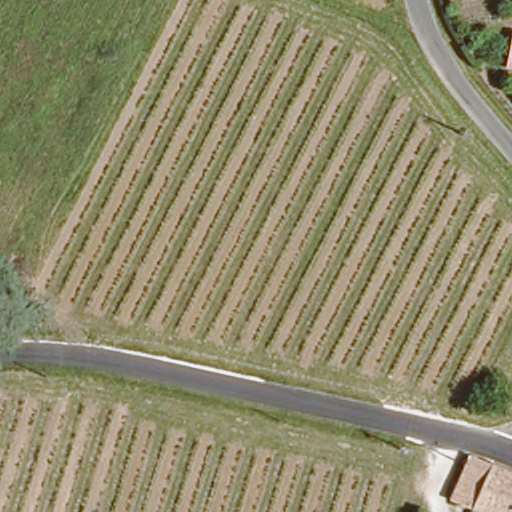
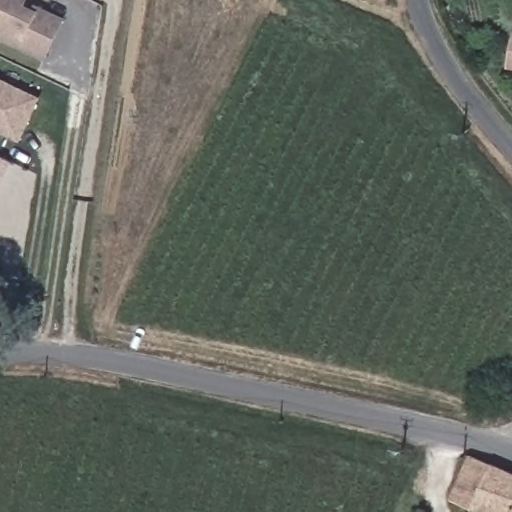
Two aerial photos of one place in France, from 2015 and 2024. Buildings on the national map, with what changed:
new [(26,5),(34,9),(35,4),(66,19),(47,60),(0,37),(0,0),(29,0),(26,5)]
unchanged [(510,37),(512,38),(512,65),(505,63),(510,37)]
new [(40,97),(20,139),(0,129),(0,79),(40,97)]
new [(10,160),(0,182),(0,156),(10,160)]
unchanged [(463,463),(466,457),(512,478),(512,512),(471,512),(448,502),(463,463)]

